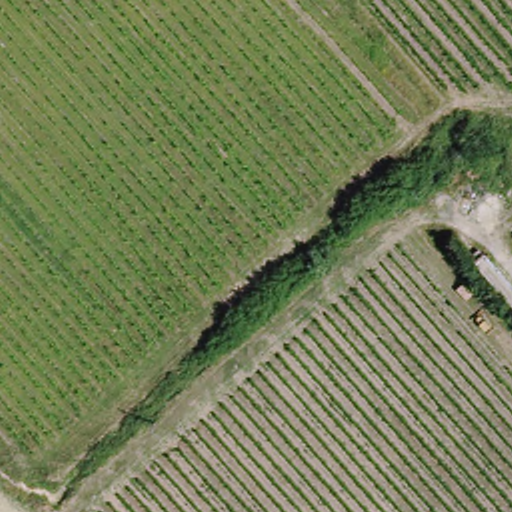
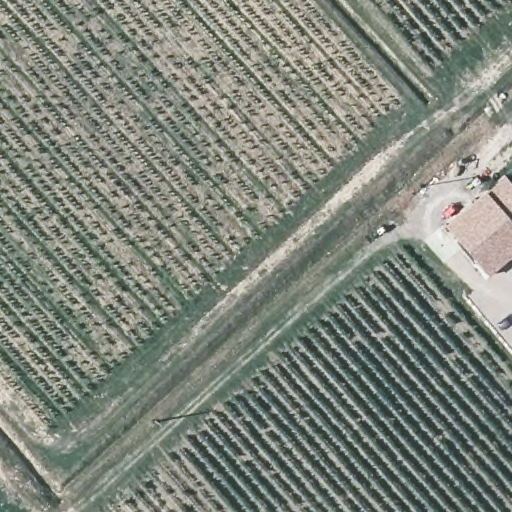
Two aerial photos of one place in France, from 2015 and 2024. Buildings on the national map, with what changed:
new [(447,226),(486,193),(505,178),(512,186),(512,255),(488,276),(447,226)]

